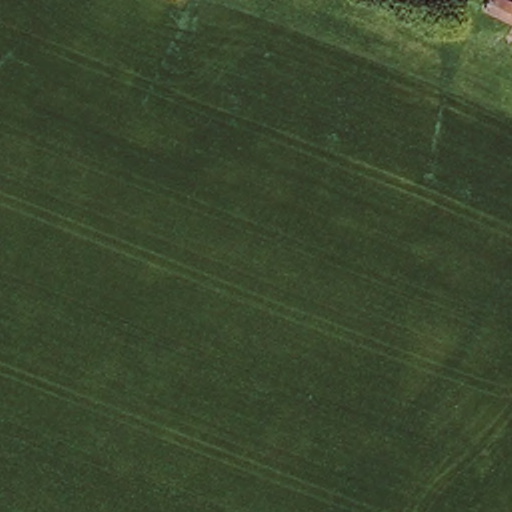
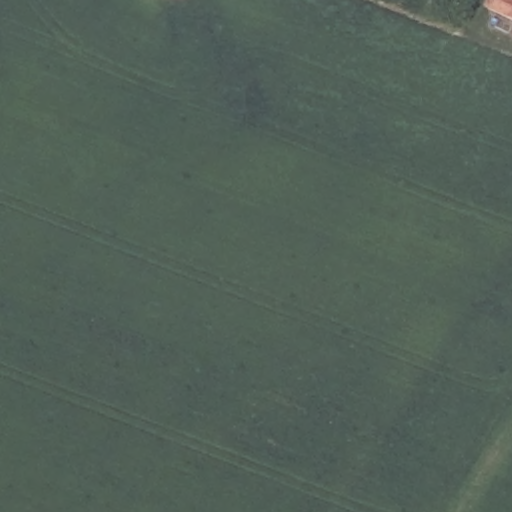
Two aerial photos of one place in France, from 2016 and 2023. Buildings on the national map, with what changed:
unchanged [(488,0),(507,0),(512,3),(512,21),(484,7),(488,0)]

